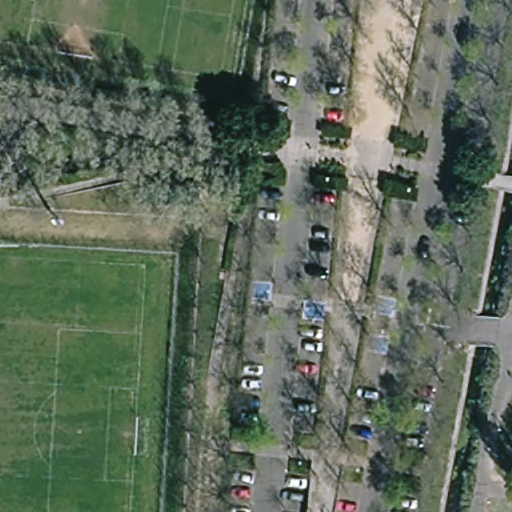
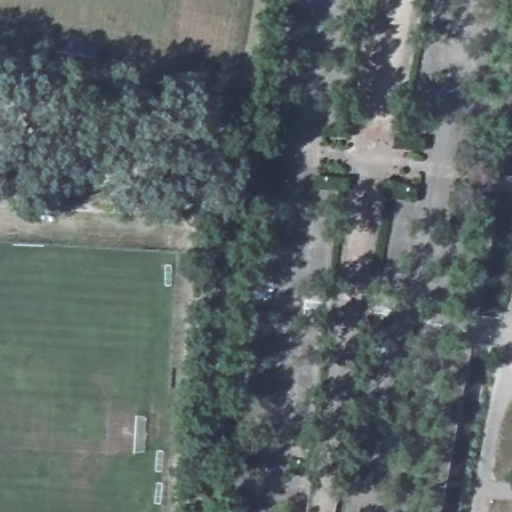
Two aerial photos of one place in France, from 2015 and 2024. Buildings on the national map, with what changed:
unchanged [(277,126),(276,134),(268,134),(269,126),(277,126)]

